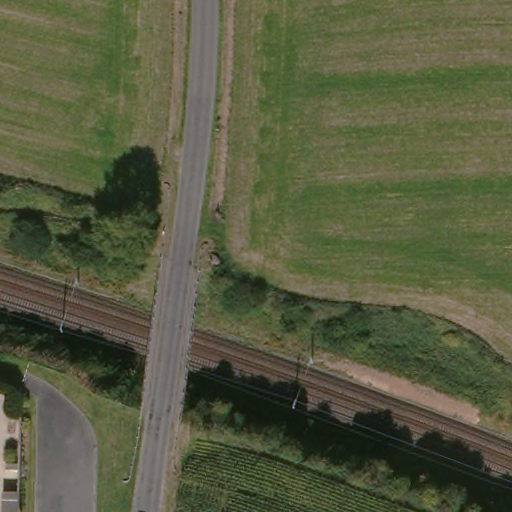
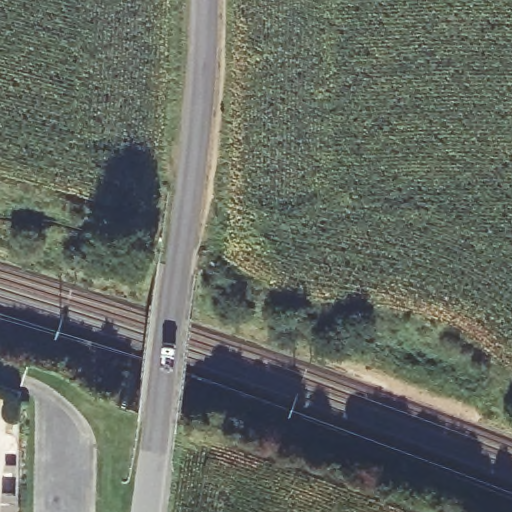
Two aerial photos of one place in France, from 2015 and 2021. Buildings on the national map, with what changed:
unchanged [(0,512),(0,510),(14,512),(0,512)]

